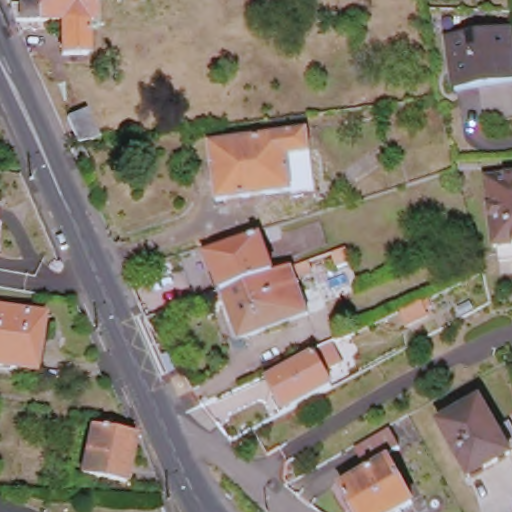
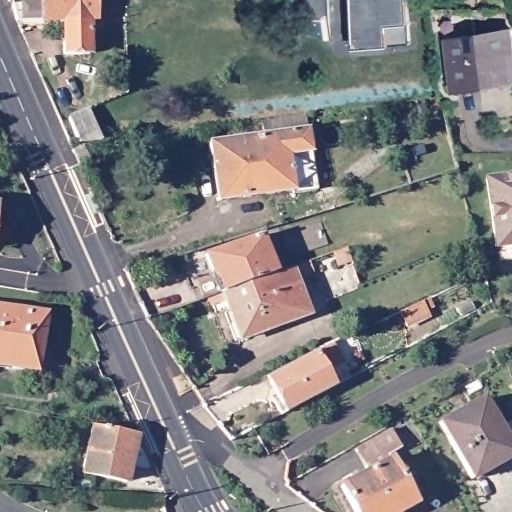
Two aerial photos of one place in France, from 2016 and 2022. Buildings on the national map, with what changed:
unchanged [(100,20),(93,20),(94,55),(68,55),(68,20),(22,20),(17,4),(46,4),(46,0),(99,0),(100,20)]
new [(392,49),(357,54),(351,0),(406,0),(410,26),(412,46),(392,49)]
unchanged [(511,32),(512,38),(512,81),(456,89),(449,42),(511,32)]
unchanged [(68,119),(88,110),(100,140),(81,144),(78,144),(68,119)]
unchanged [(316,189),(316,191),(285,195),(285,192),(218,201),(211,142),(263,135),(262,121),(305,116),(306,130),(308,130),(316,189)]
unchanged [(82,146),(88,160),(79,164),(73,150),(82,146)]
unchanged [(512,176),(512,260),(500,261),(498,247),(495,247),(487,179),(512,176)]
unchanged [(216,277),(213,278),(207,260),(261,241),(275,278),(223,296),(216,277)]
unchanged [(333,252),(347,248),(351,261),(338,266),(333,252)]
unchanged [(240,344),(223,296),(275,278),(293,272),(310,266),(315,278),(297,285),(310,319),(240,344)]
unchanged [(425,301),(433,315),(406,328),(400,313),(425,301)]
unchanged [(35,371),(0,365),(0,307),(45,315),(35,371)]
unchanged [(268,376),(314,351),(333,387),(286,412),(268,376)]
unchanged [(443,425),(485,401),(512,448),(512,460),(500,466),(495,456),(484,462),(490,472),(475,480),(443,425)]
unchanged [(137,436),(127,483),(83,473),(92,426),(137,436)]
unchanged [(352,486),(350,480),(355,477),(358,483),(367,478),(355,456),(390,436),(400,455),(387,461),(414,508),(408,512),(352,512),(341,492),(352,486)]

